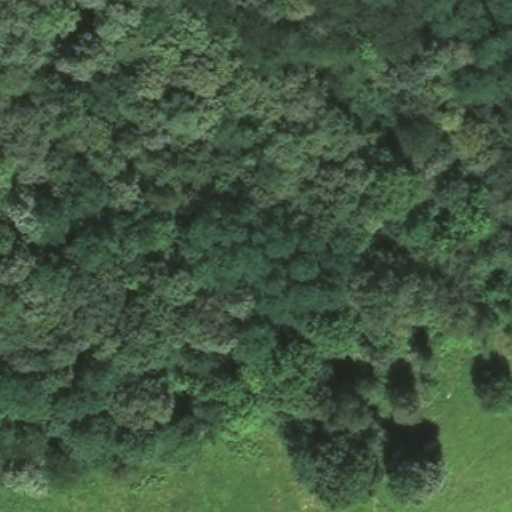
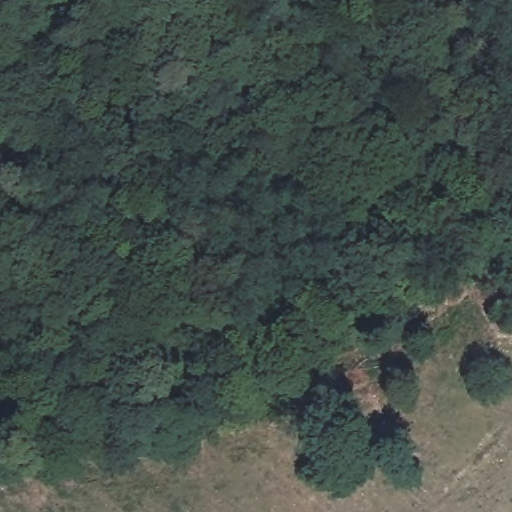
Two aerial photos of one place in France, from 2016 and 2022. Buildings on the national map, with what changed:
[]

